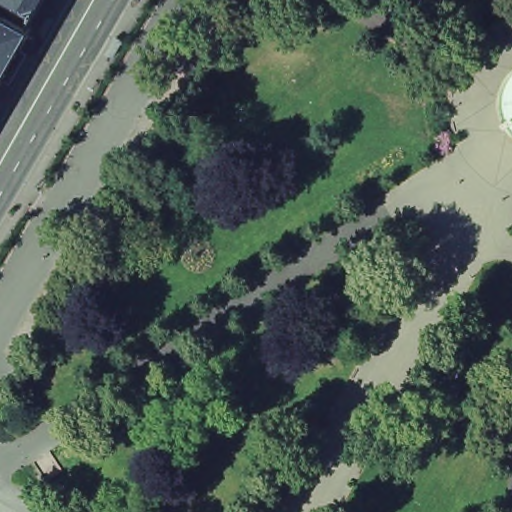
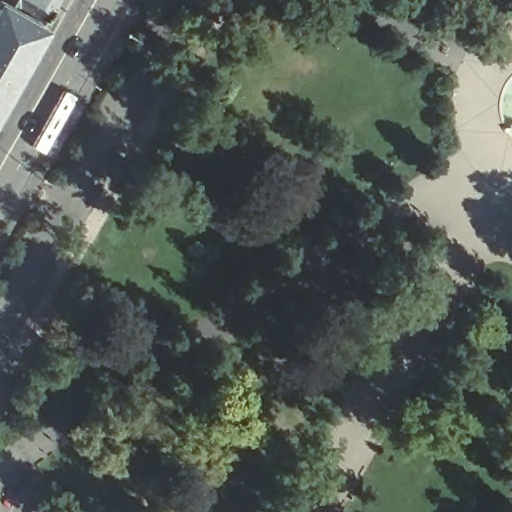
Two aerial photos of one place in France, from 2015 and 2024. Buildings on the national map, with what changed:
unchanged [(0,5),(0,0),(39,0),(27,20),(0,5)]
unchanged [(26,23),(29,25),(0,75),(0,5),(27,20),(26,23)]

